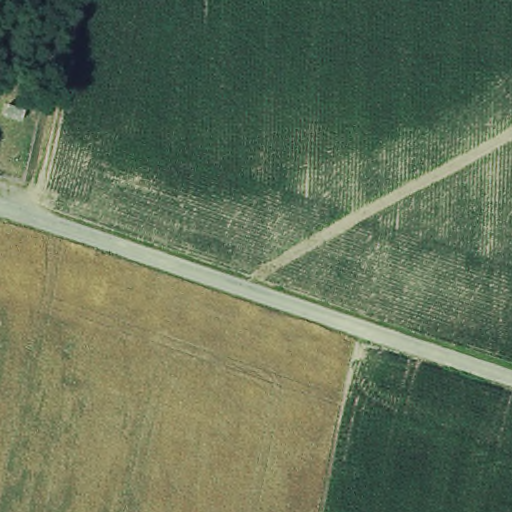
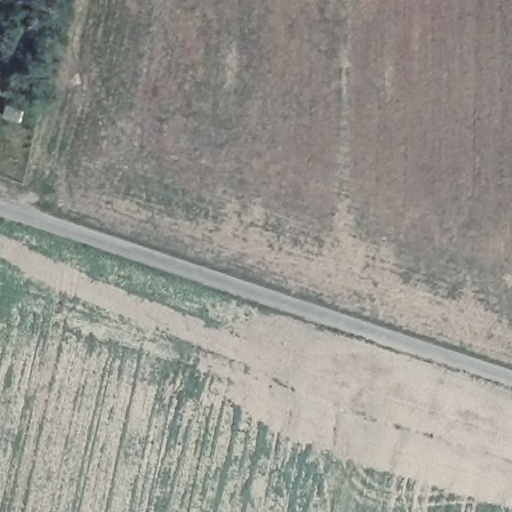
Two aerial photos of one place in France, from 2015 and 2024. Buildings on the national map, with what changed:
unchanged [(25,109),(21,121),(6,116),(10,104),(25,109)]

